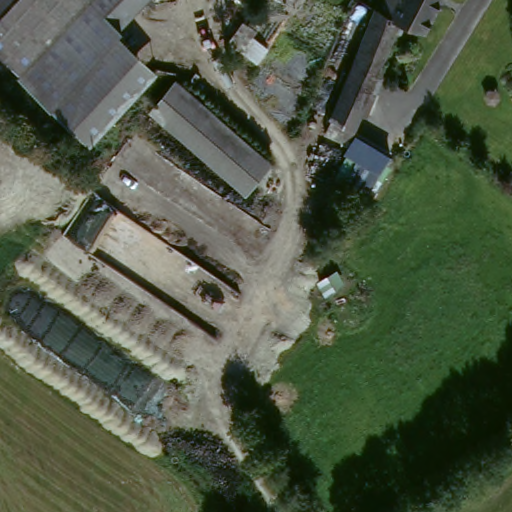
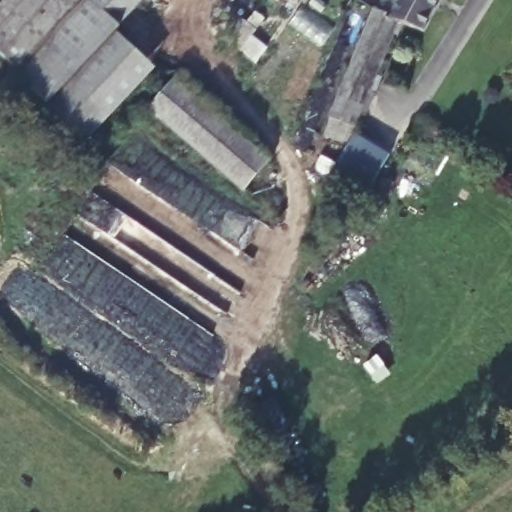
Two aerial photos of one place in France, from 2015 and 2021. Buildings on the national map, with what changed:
unchanged [(0,46),(0,0),(96,0),(29,72),(0,46)]
unchanged [(119,32),(160,71),(92,142),(24,79),(29,72),(96,0),(149,0),(119,32)]
unchanged [(295,7),(284,0),(300,0),(295,7)]
unchanged [(345,140),(344,142),(330,136),(322,132),(327,121),(325,119),(372,10),(375,12),(381,0),(404,0),(395,20),(345,140)]
unchanged [(404,0),(444,0),(429,35),(395,20),(404,0)]
unchanged [(176,81),(269,166),(243,192),(150,106),(176,81)]
unchanged [(391,153),(367,192),(335,175),(358,134),(391,153)]

